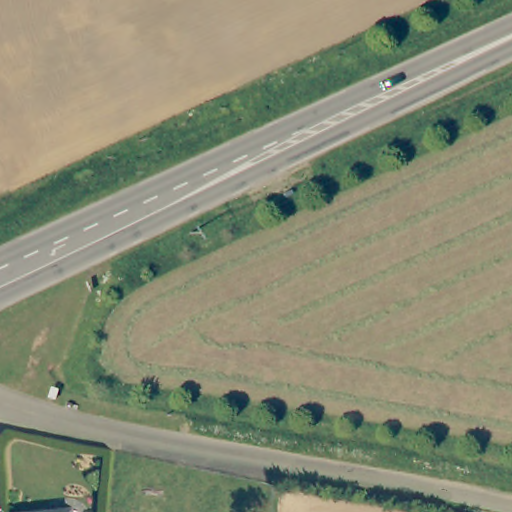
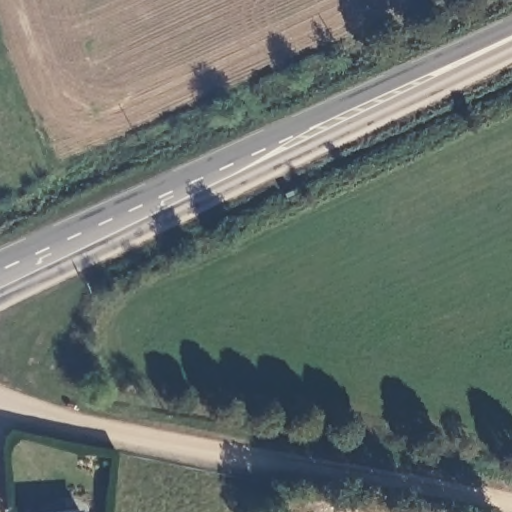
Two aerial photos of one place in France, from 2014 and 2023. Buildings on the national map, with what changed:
unchanged [(75,512),(51,512),(51,510),(75,509),(75,512)]

